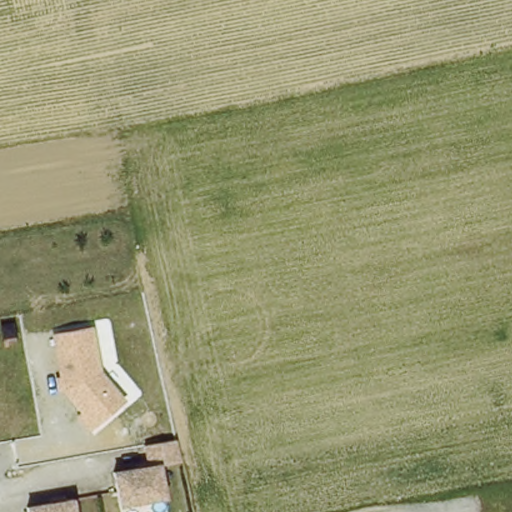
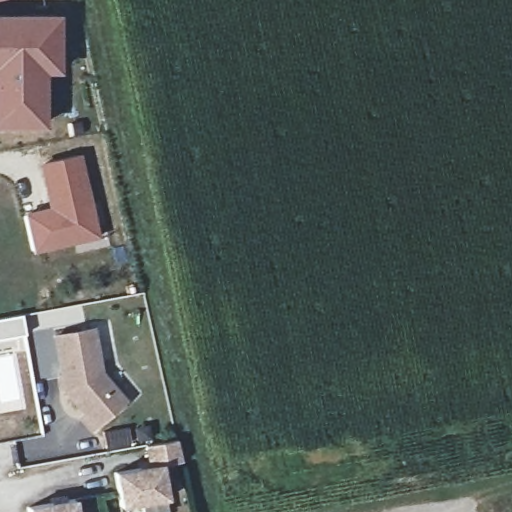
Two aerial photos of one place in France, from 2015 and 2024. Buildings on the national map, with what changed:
new [(0,128),(0,15),(60,15),(62,75),(46,76),(45,127),(0,128)]
new [(47,206),(37,164),(80,154),(99,236),(33,254),(22,213),(47,206)]
new [(22,312),(25,335),(0,339),(0,316),(22,312)]
unchanged [(97,426),(65,388),(57,335),(94,330),(103,375),(126,400),(97,426)]
unchanged [(117,505),(112,471),(146,465),(142,445),(173,438),(177,460),(156,464),(162,497),(117,505)]
unchanged [(25,506),(70,498),(73,512),(26,512),(25,506)]

